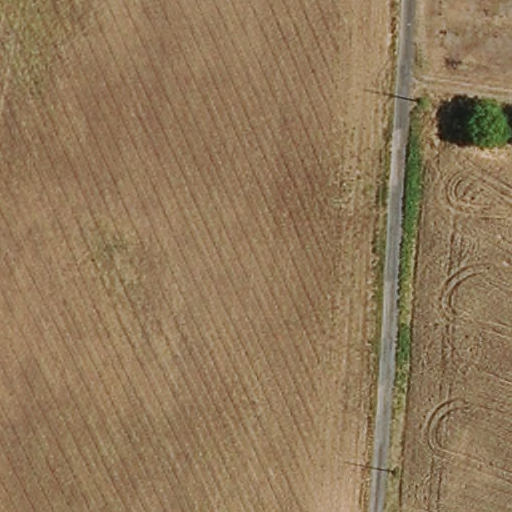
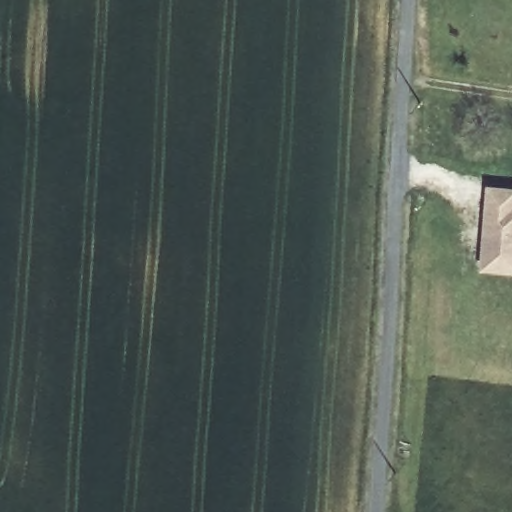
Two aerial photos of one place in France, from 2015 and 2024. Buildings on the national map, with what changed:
new [(490,183),(512,184),(512,271),(483,270),(490,183)]

